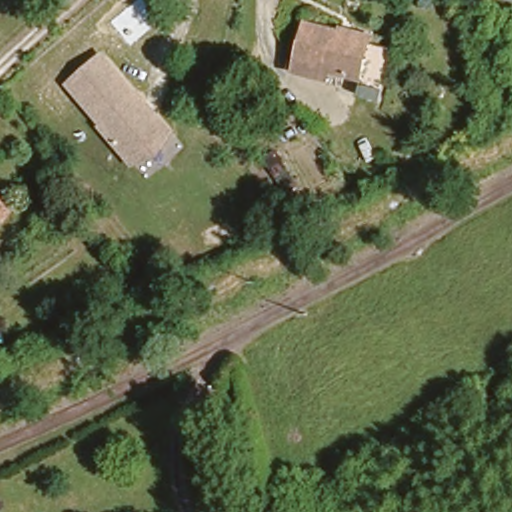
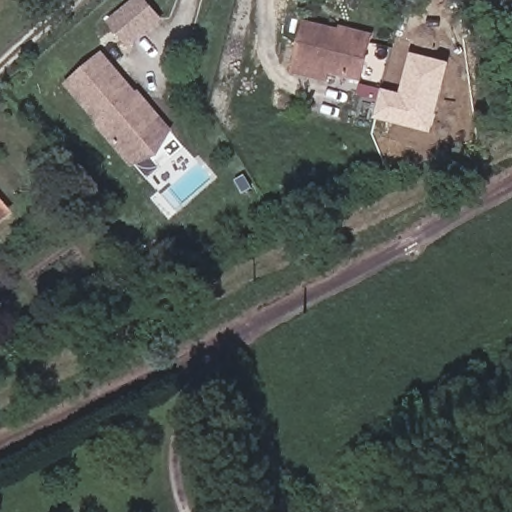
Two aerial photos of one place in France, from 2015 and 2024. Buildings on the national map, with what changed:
new [(134,0),(143,0),(158,18),(129,44),(109,21),(134,0)]
unchanged [(296,70),(298,59),(306,18),(343,23),(345,14),(371,19),(368,34),(362,72),(331,66),(329,76),(296,70)]
unchanged [(133,161),(101,123),(103,122),(68,81),(102,52),(136,93),(138,91),(171,129),(133,161)]
new [(380,89),(398,93),(409,53),(448,63),(429,133),(372,119),(380,89)]
unchanged [(11,199),(6,204),(0,211),(0,189),(11,199)]
unchanged [(0,355),(0,324),(6,320),(9,325),(20,343),(0,355)]

